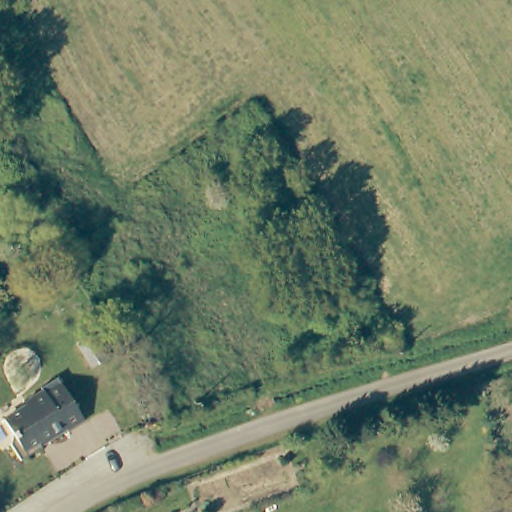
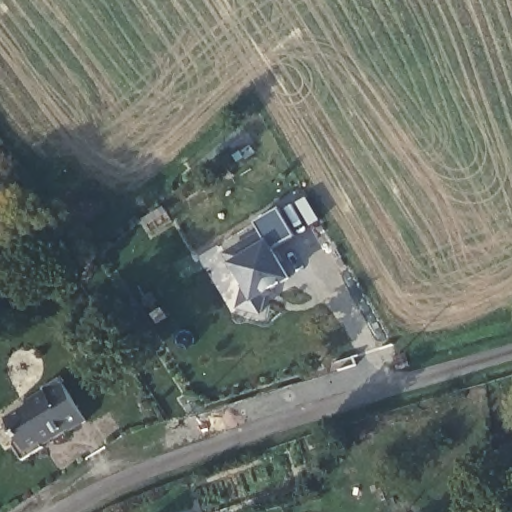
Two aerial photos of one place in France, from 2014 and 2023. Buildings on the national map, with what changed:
new [(259,238),(253,228),(277,214),(293,242),(270,255),(287,284),(264,298),(258,319),(236,313),(242,292),(223,259),(259,238)]
unchanged [(4,284),(0,288),(0,281),(4,284)]
unchanged [(30,406),(30,399),(48,389),(46,386),(62,376),(89,419),(73,429),(71,428),(59,437),(54,436),(44,442),(46,446),(25,459),(15,444),(18,434),(9,419),(30,406)]

